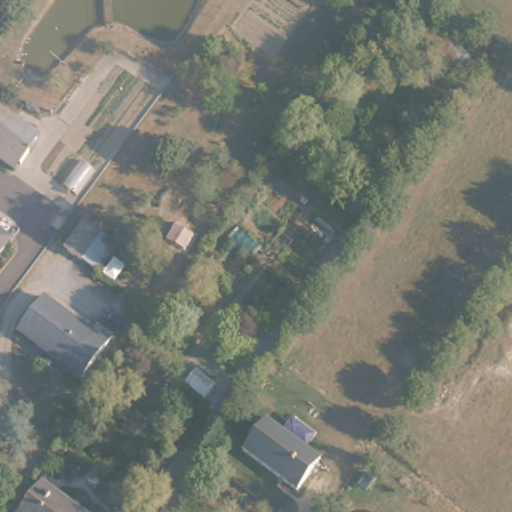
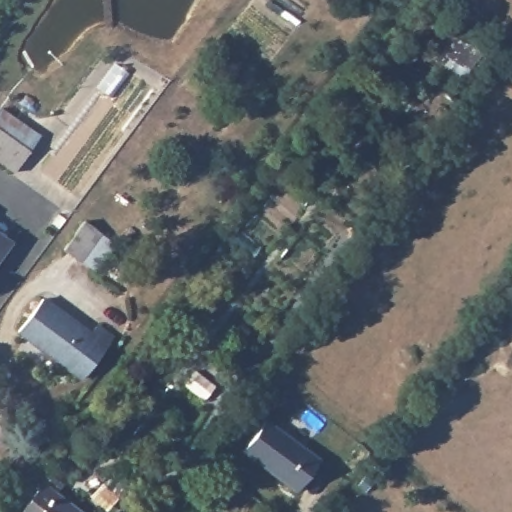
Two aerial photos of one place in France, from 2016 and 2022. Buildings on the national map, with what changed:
unchanged [(30,145),(14,168),(0,158),(0,124),(30,145)]
unchanged [(93,225),(111,238),(90,265),(73,252),(93,225)]
unchanged [(8,247),(0,257),(0,241),(8,247)]
unchanged [(87,330),(92,323),(111,338),(78,379),(59,364),(17,330),(45,296),(87,330)]
unchanged [(241,452),(264,419),(285,436),(294,424),(312,435),(304,449),(319,461),(295,492),(241,452)]
unchanged [(74,512),(16,512),(41,483),(74,512)]

